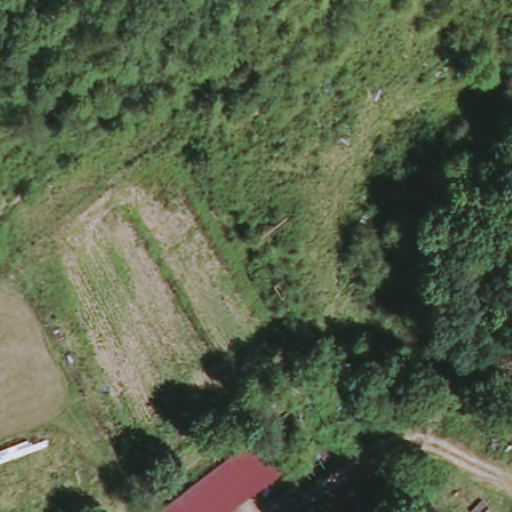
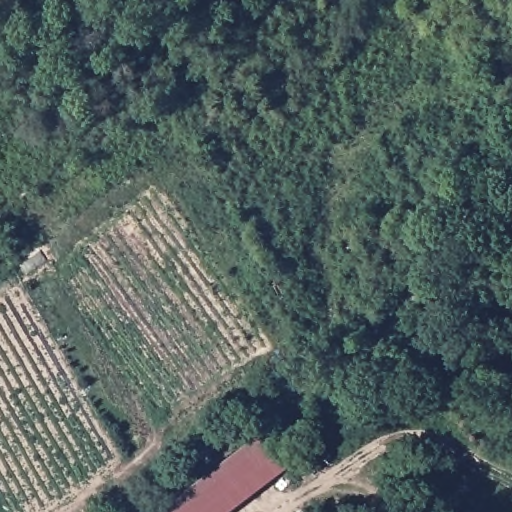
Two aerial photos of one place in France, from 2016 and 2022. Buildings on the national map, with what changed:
unchanged [(252,443),(277,475),(228,512),(161,512),(252,443)]

